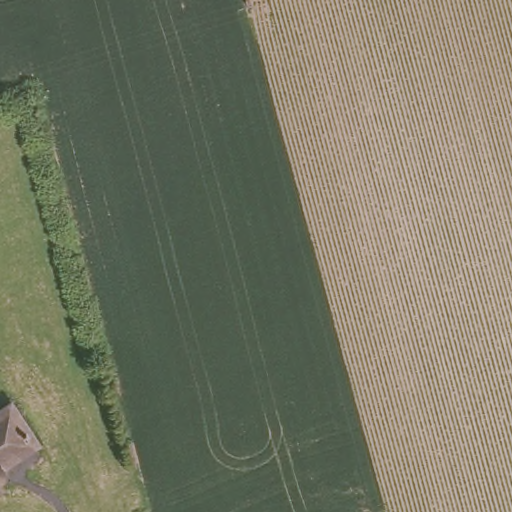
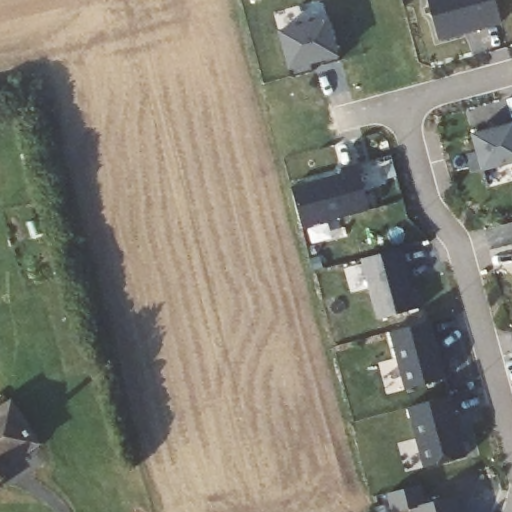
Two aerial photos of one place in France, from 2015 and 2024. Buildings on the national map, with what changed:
new [(502,25),(438,41),(428,0),(495,0),(502,25)]
new [(338,57),(289,70),(277,31),(328,17),(338,57)]
new [(481,173),(471,134),(512,122),(512,164),(481,173)]
new [(302,229),(292,188),(344,174),(343,170),(356,166),(369,210),(302,229)]
new [(413,292),(418,291),(422,307),(377,320),(361,260),(401,250),(413,292)]
new [(405,389),(390,333),(431,322),(445,378),(405,389)]
unchanged [(36,442),(0,457),(0,397),(5,393),(36,442)]
new [(424,467),(408,410),(451,397),(466,455),(424,467)]
unchanged [(0,482),(0,480),(1,481),(0,482)]
new [(414,512),(412,507),(457,496),(462,512),(414,512)]

